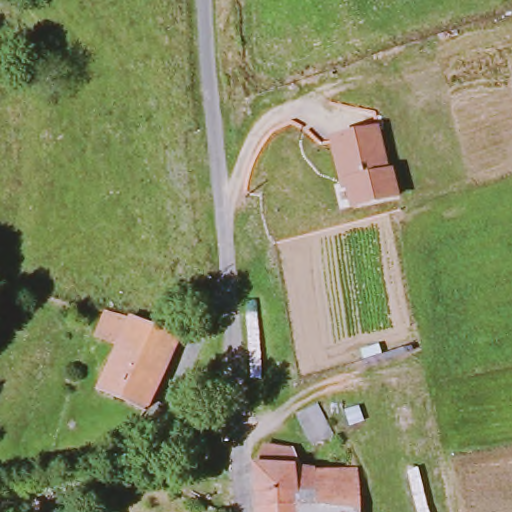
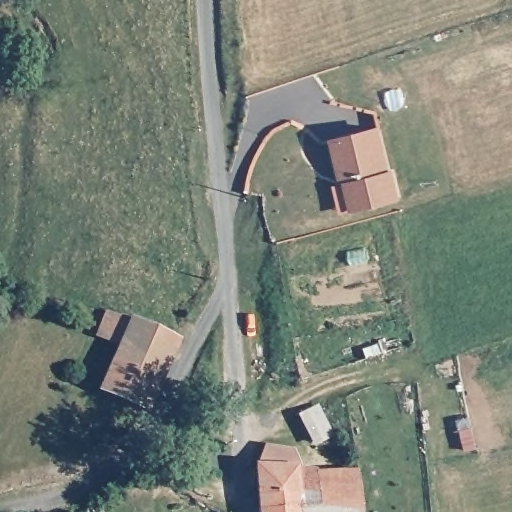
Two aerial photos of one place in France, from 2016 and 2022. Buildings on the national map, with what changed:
unchanged [(388,168),(393,168),(399,197),(351,206),(346,190),(342,190),(330,135),(378,125),(388,168)]
unchanged [(98,391),(117,350),(90,340),(98,318),(127,326),(174,347),(143,412),(98,391)]
unchanged [(309,439),(295,415),(313,402),(327,426),(309,439)]
unchanged [(296,448),(296,466),(313,466),(313,470),(314,500),(256,506),(253,464),(261,447),(289,449),(296,448)]
unchanged [(357,512),(256,512),(256,506),(314,500),(313,470),(352,467),(357,512)]
unchanged [(106,482),(125,478),(128,492),(109,498),(107,493),(106,482)]

